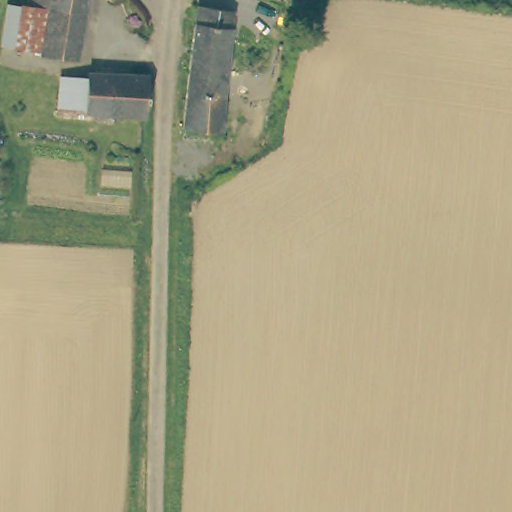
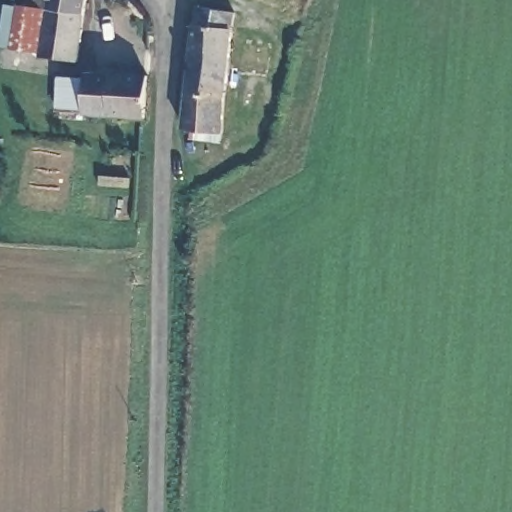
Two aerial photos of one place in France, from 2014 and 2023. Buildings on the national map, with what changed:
unchanged [(3,0),(10,0),(42,2),(36,45),(0,40),(0,18),(3,0)]
unchanged [(73,56),(35,51),(36,45),(42,2),(30,0),(81,0),(79,8),(73,56)]
unchanged [(193,1),(229,7),(220,85),(217,128),(178,122),(193,1)]
unchanged [(54,105),(56,72),(82,74),(82,68),(142,70),(140,112),(54,105)]

